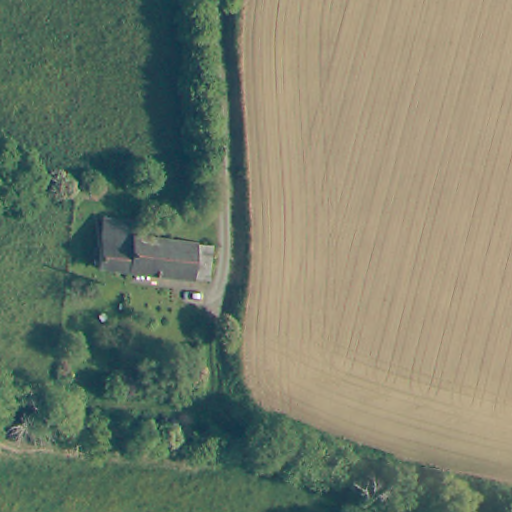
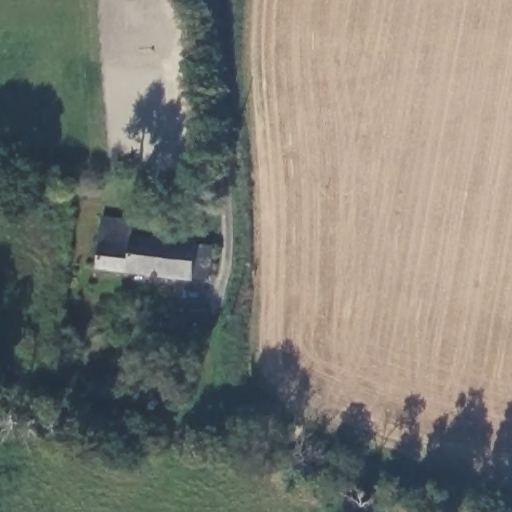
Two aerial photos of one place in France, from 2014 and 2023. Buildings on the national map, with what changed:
unchanged [(130,270),(98,265),(105,216),(137,221),(135,236),(130,270)]
unchanged [(208,280),(130,270),(135,236),(210,246),(208,280)]

